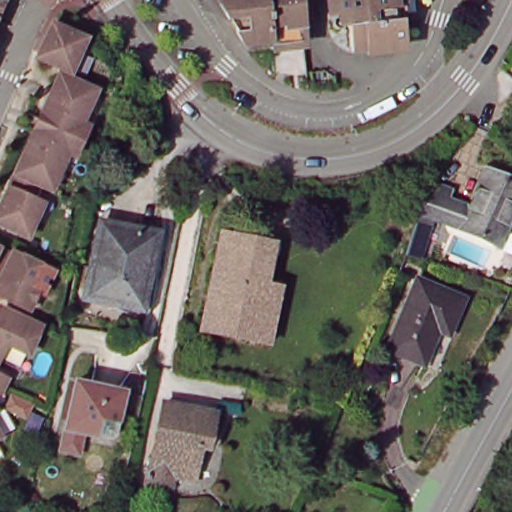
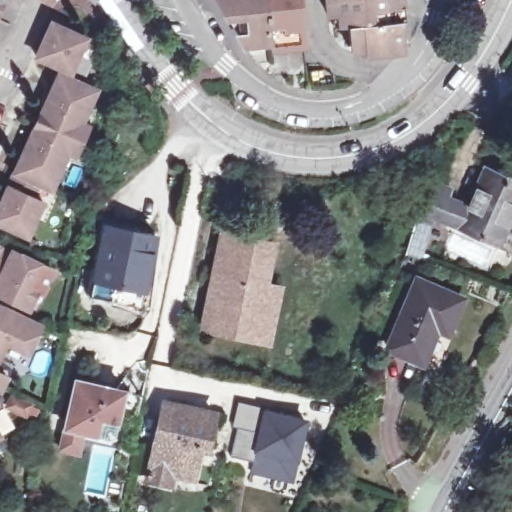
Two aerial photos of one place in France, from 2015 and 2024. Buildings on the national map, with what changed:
unchanged [(271,40),(269,41),(268,39),(245,42),(238,32),(235,12),(225,12),(218,0),(266,0),(271,40)]
unchanged [(303,36),(305,56),(307,73),(276,77),(275,76),(271,40),(266,0),(299,0),(303,36)]
unchanged [(330,2),(327,2),(327,0),(347,0),(330,2)]
unchanged [(330,2),(347,0),(387,0),(392,44),(346,49),(342,18),(329,18),(327,2),(330,2)]
unchanged [(35,56),(49,22),(83,37),(67,71),(35,56)]
unchanged [(48,111),(40,108),(56,72),(87,87),(82,98),(86,100),(70,136),(46,189),(32,183),(27,194),(40,200),(23,235),(0,224),(0,199),(12,173),(29,133),(37,137),(43,122),(48,111)]
unchanged [(452,193),(448,203),(472,212),(488,175),(512,186),(512,220),(500,249),(434,221),(421,264),(407,259),(407,255),(420,215),(430,185),(452,193)]
unchanged [(133,304),(87,294),(88,286),(81,284),(85,263),(93,265),(102,223),(155,233),(150,258),(141,305),(133,304)]
unchanged [(233,334),(211,329),(205,328),(212,293),(224,233),(272,243),(265,283),(276,286),(268,331),(266,340),(233,334)]
unchanged [(9,254),(10,252),(35,264),(26,285),(34,289),(25,310),(8,303),(0,299),(0,294),(3,288),(0,287),(0,249),(9,254)]
unchanged [(389,347),(418,280),(462,298),(448,331),(438,327),(423,362),(389,347)]
unchanged [(5,312),(20,319),(25,321),(37,327),(24,354),(3,344),(0,351),(0,319),(5,312)]
unchanged [(2,378),(0,382),(0,377),(2,378)]
unchanged [(57,450),(60,429),(71,380),(120,391),(110,434),(105,438),(77,433),(73,453),(57,450)]
unchanged [(147,476),(150,464),(151,464),(161,417),(168,419),(172,399),(215,408),(208,441),(202,439),(195,473),(173,469),(170,480),(147,476)]
new [(257,432),(262,409),(307,418),(297,462),(292,483),(248,473),(250,461),(230,457),(237,428),(257,432)]

